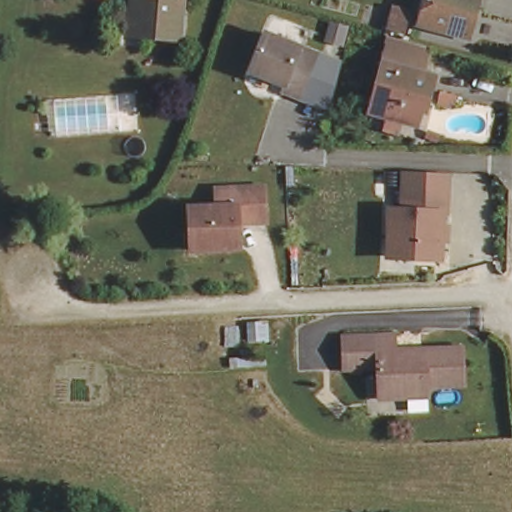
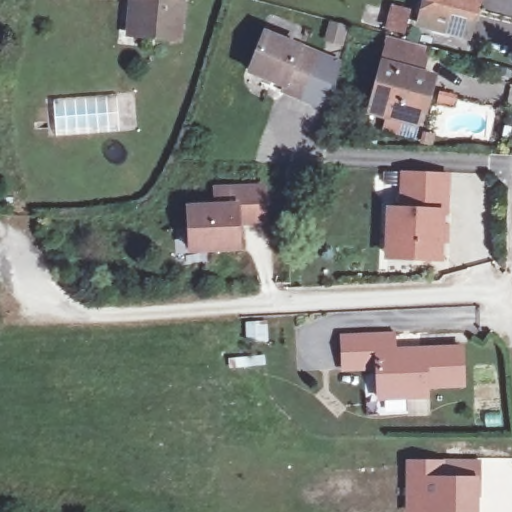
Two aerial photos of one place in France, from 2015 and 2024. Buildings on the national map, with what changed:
unchanged [(126,0),(177,0),(177,1),(183,3),(169,46),(135,32),(118,27),(126,0)]
unchanged [(468,40),(427,29),(420,19),(425,0),(478,0),(468,40)]
unchanged [(283,84),(248,70),(263,31),(316,54),(300,100),(280,91),(283,84)]
unchanged [(381,67),(378,67),(385,39),(428,50),(421,77),(381,67)]
unchanged [(433,80),(428,98),(424,97),(417,127),(370,116),(381,67),(421,77),(433,80)]
unchanged [(388,253),(390,214),(403,214),(405,192),(405,176),(448,179),(448,195),(447,217),(442,217),(442,231),(447,231),(447,245),(440,245),(440,262),(415,261),(388,260),(388,253)]
unchanged [(218,207),(217,191),(265,190),(265,224),(238,224),(240,250),(191,252),(190,209),(218,207)]
unchanged [(463,352),(465,388),(428,390),(429,400),(380,402),(380,372),(345,372),(345,354),(345,341),(395,338),(396,352),(397,354),(463,352)]
new [(480,459),(478,477),(479,512),(405,512),(405,460),(480,459)]

